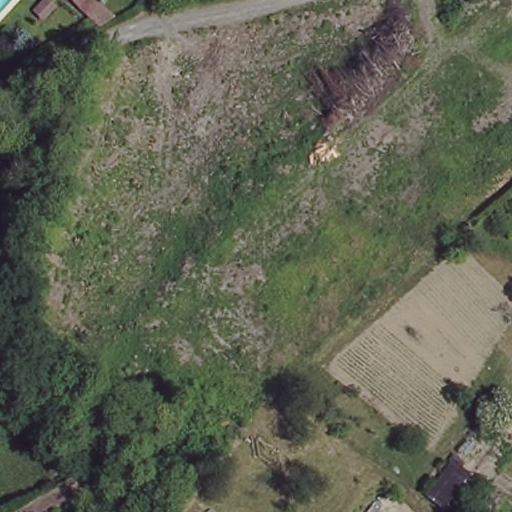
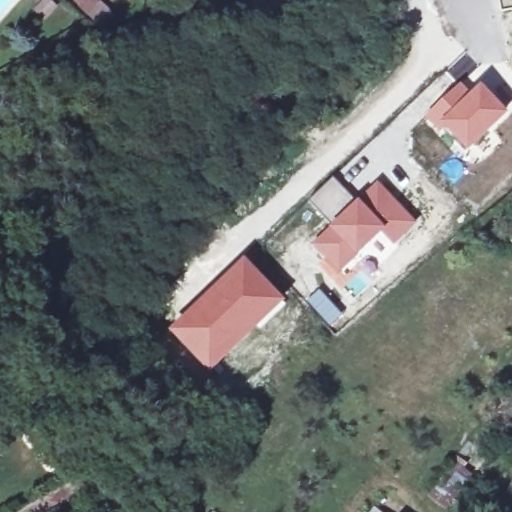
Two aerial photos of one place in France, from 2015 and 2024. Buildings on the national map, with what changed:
new [(460,80),(471,92),(481,82),(507,111),(465,149),(444,127),(439,132),(423,114),(460,80)]
new [(333,175),(357,199),(331,224),(308,200),(333,175)]
new [(331,224),(357,199),(377,179),(416,221),(393,243),(380,232),(341,271),(350,280),(341,288),(318,263),(324,257),(313,245),(331,224)]
new [(245,256),(285,298),(210,372),(168,329),(245,256)]
new [(319,287),(343,314),(330,326),(305,300),(319,287)]

